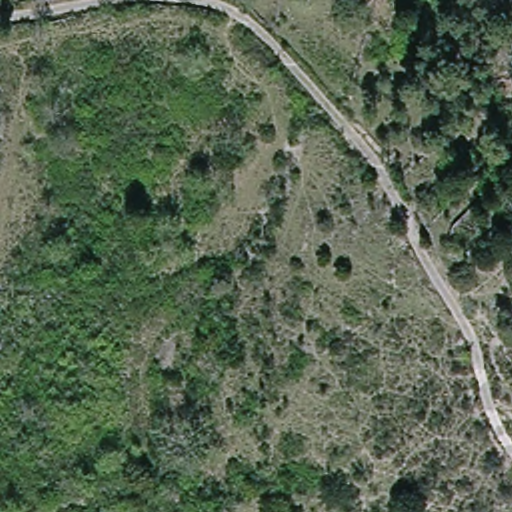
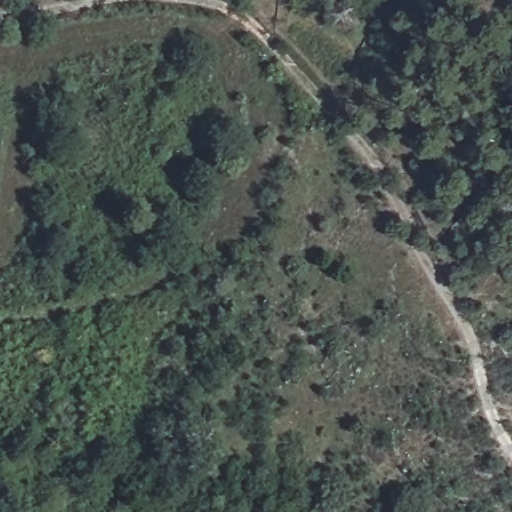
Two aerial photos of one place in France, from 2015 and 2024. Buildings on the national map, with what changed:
[]

